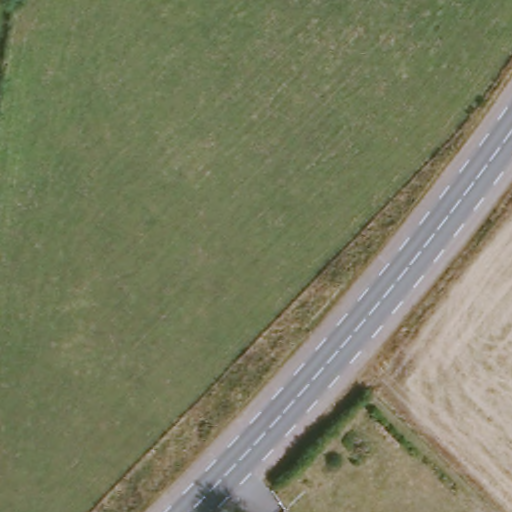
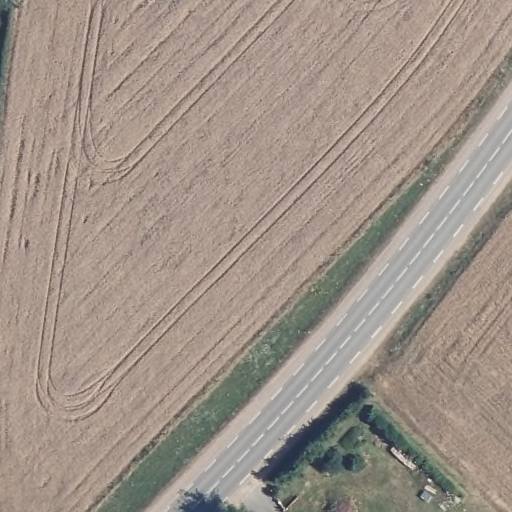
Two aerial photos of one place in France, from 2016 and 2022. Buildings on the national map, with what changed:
[]

